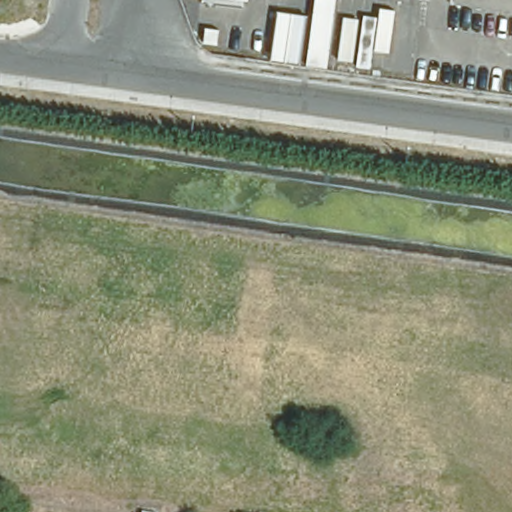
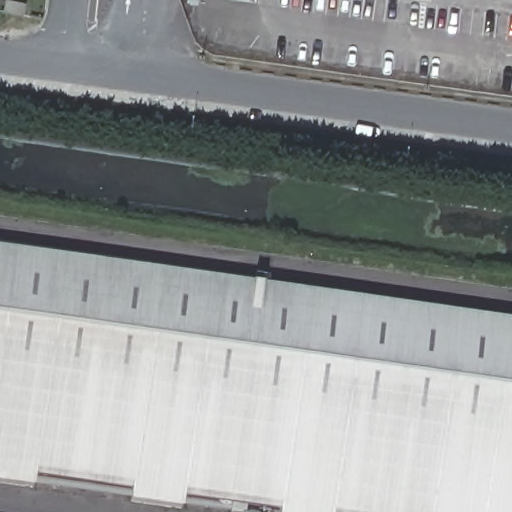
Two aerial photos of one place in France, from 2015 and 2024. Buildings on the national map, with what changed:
new [(184,497),(181,510),(131,502),(132,490),(36,476),(35,486),(0,481),(0,245),(512,317),(512,512),(280,512),(280,511),(184,497)]

